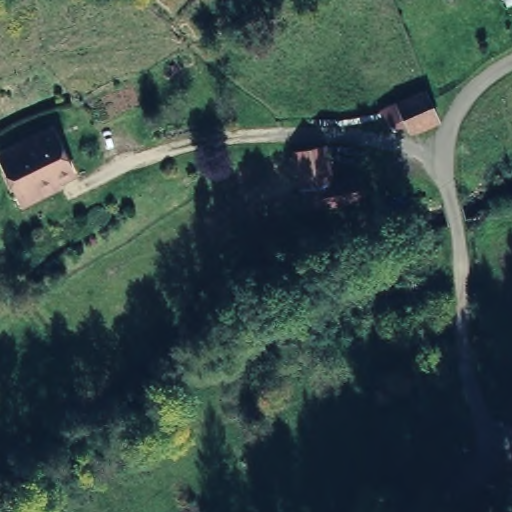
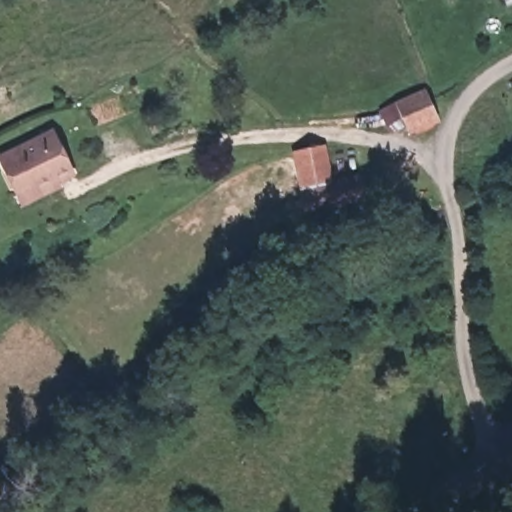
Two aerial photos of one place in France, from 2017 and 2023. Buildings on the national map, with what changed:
unchanged [(504,0),(512,0),(512,12),(510,13),(504,0)]
unchanged [(434,111),(407,124),(394,96),(422,84),(434,111)]
unchanged [(22,200),(19,190),(2,151),(55,128),(74,172),(60,177),(62,182),(22,200)]
unchanged [(360,199),(332,204),(306,207),(297,150),(323,146),(329,183),(356,179),(360,199)]

